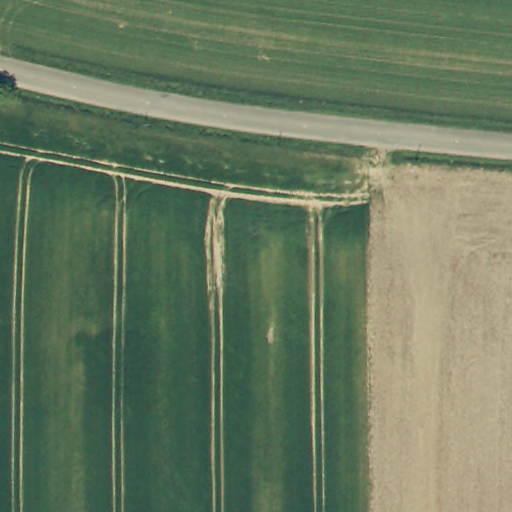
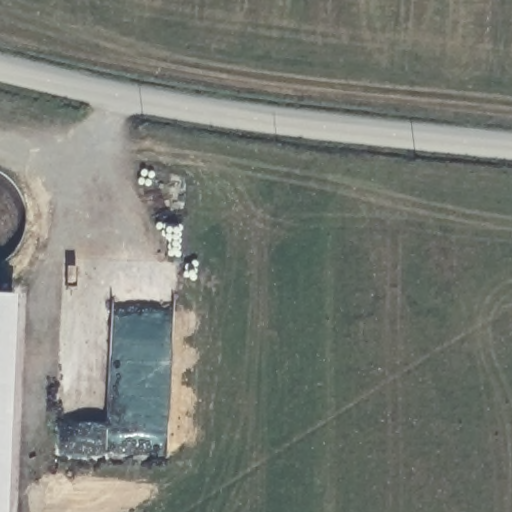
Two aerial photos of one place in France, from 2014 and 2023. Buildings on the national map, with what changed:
new [(8,512),(0,512),(0,294),(17,294),(8,512)]

